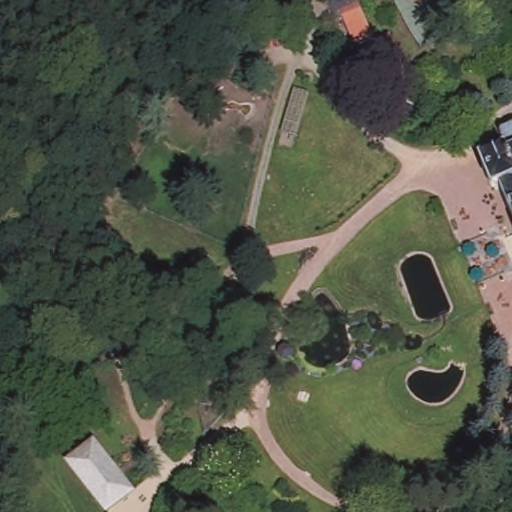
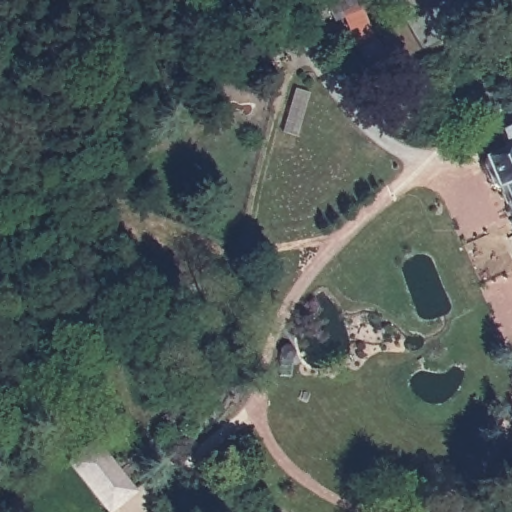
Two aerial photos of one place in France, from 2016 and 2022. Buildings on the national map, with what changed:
unchanged [(395,59),(399,66),(400,71),(375,84),(366,65),(358,49),(376,40),(383,55),(387,62),(395,59)]
unchanged [(512,123),(512,217),(496,182),(487,182),(476,158),(504,145),(498,129),(512,123)]
unchanged [(510,257),(499,230),(506,226),(509,233),(512,232),(512,256),(510,257)]
unchanged [(65,463),(94,441),(135,493),(112,512),(103,512),(65,463)]

